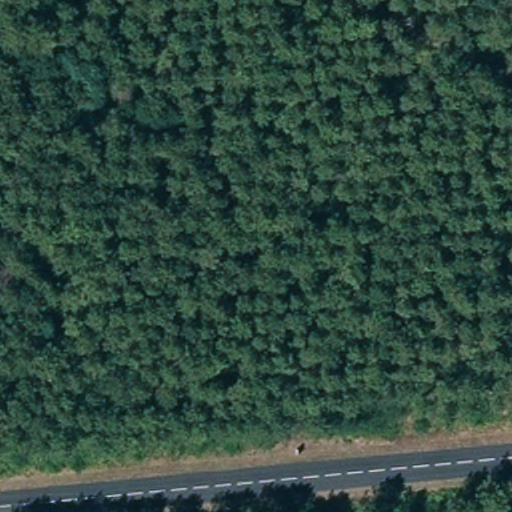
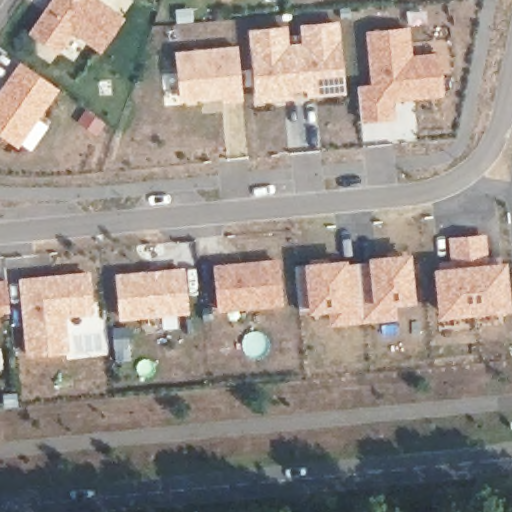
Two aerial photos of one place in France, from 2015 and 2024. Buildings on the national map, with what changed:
new [(125,17),(102,54),(73,34),(59,54),(28,33),(51,0),(98,0),(125,17)]
new [(288,26),(290,43),(302,42),(301,23),(340,20),(347,94),(309,98),(308,90),(295,91),(295,99),(257,102),(249,30),(288,26)]
new [(414,54),(442,51),(446,97),(396,102),(397,120),(362,123),(359,84),(372,83),(367,29),(411,25),(414,54)]
new [(239,45),(245,100),(223,103),(222,97),(181,102),(176,52),(239,45)]
new [(61,89),(19,148),(0,136),(0,90),(21,61),(61,89)]
new [(487,232),(489,261),(450,264),(447,236),(487,232)]
new [(349,258),(411,251),(416,302),(396,304),(398,319),(329,327),(326,310),(308,312),(302,262),(349,258)]
new [(280,258),(285,306),(219,312),(214,265),(280,258)]
new [(489,261),(508,260),(512,304),(512,309),(438,318),(432,266),(450,264),(489,261)]
new [(186,267),(191,313),(122,320),(117,273),(186,267)]
new [(92,272),(96,315),(67,318),(71,354),(27,358),(20,278),(92,272)]
new [(7,280),(11,313),(0,314),(0,281),(7,280)]

